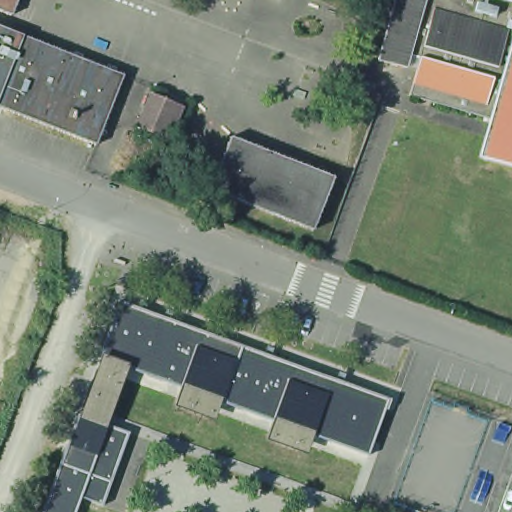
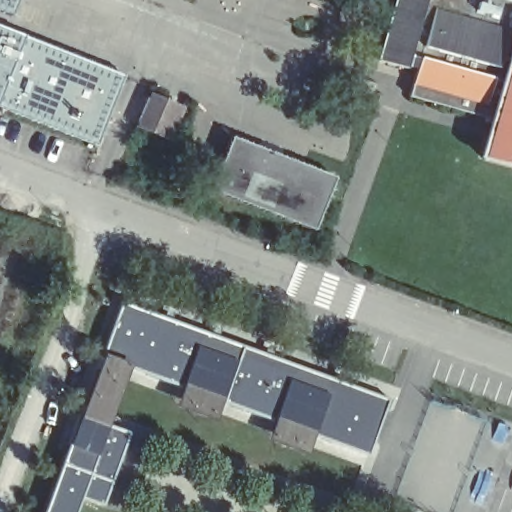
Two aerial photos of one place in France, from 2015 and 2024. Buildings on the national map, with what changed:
unchanged [(13,15),(0,10),(0,0),(19,0),(13,15)]
unchanged [(405,63),(378,55),(393,0),(512,0),(512,62),(507,82),(419,58),(407,54),(405,63)]
unchanged [(125,77),(97,147),(0,108),(0,27),(125,77)]
unchanged [(512,168),(486,161),(497,119),(410,95),(419,58),(507,82),(512,62),(512,168)]
unchanged [(187,111),(173,143),(142,129),(154,99),(166,105),(168,102),(187,111)]
unchanged [(335,176),(314,228),(211,187),(232,135),(335,176)]
unchanged [(266,441),(273,422),(220,403),(213,422),(174,407),(181,388),(127,368),(98,357),(119,300),(390,400),(386,411),(384,410),(368,457),(312,436),(305,455),(266,441)]
unchanged [(127,368),(107,424),(78,414),(98,357),(127,368)]
unchanged [(104,506),(81,498),(77,512),(43,512),(78,414),(107,424),(130,433),(104,506)]

